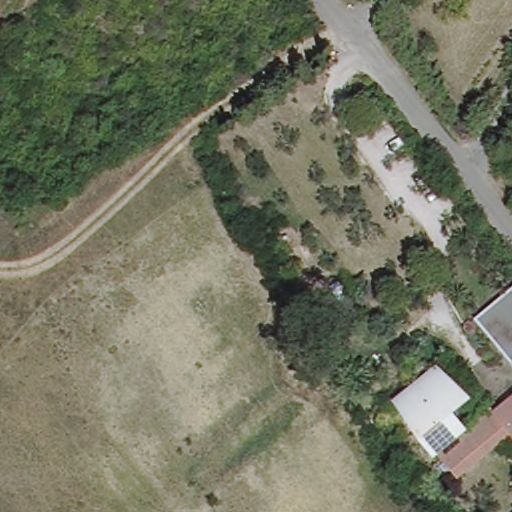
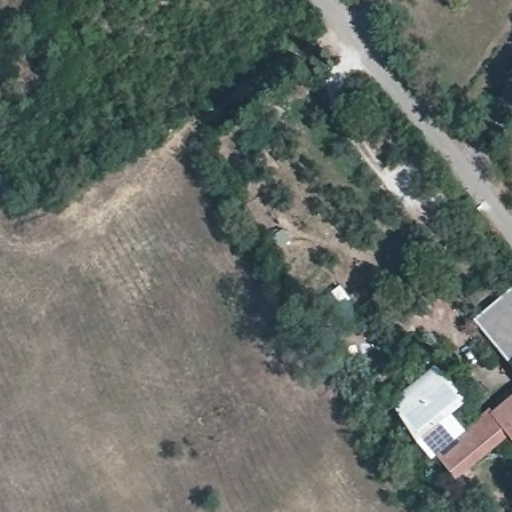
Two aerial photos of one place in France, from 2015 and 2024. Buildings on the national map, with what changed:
unchanged [(509,363),(474,320),(509,292),(512,296),(512,360),(509,363)]
unchanged [(391,400),(434,368),(441,376),(432,375),(432,384),(398,409),(391,400)]
unchanged [(398,409),(432,384),(432,376),(432,375),(441,376),(456,395),(414,428),(398,409)]
unchanged [(460,402),(443,416),(461,439),(466,436),(512,398),(512,438),(509,435),(455,479),(414,428),(456,395),(460,402)]

